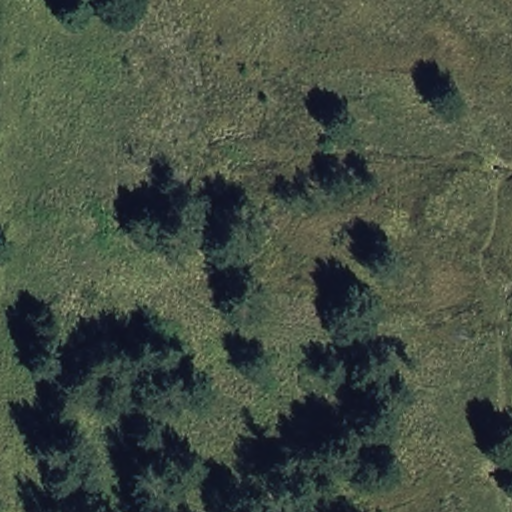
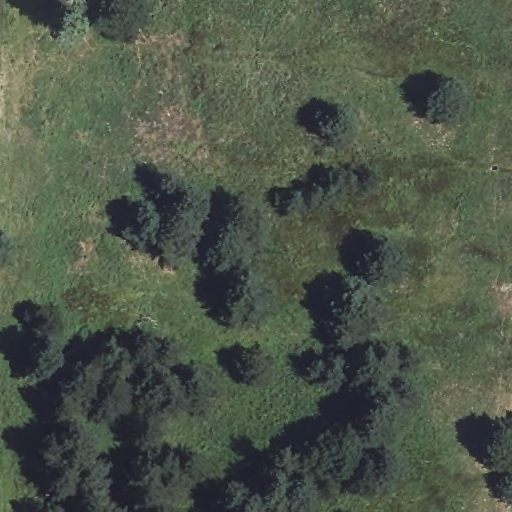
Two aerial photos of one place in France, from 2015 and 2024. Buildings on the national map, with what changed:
[]

